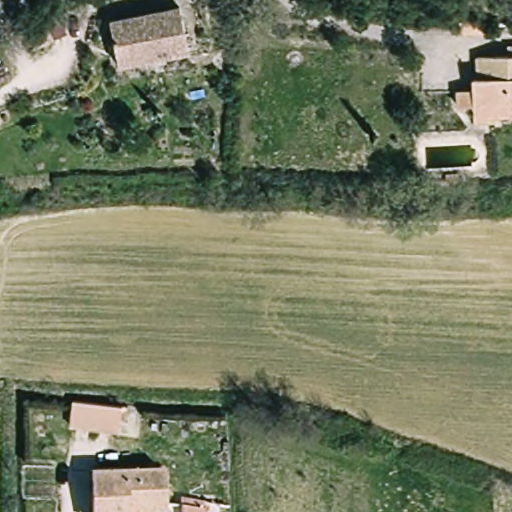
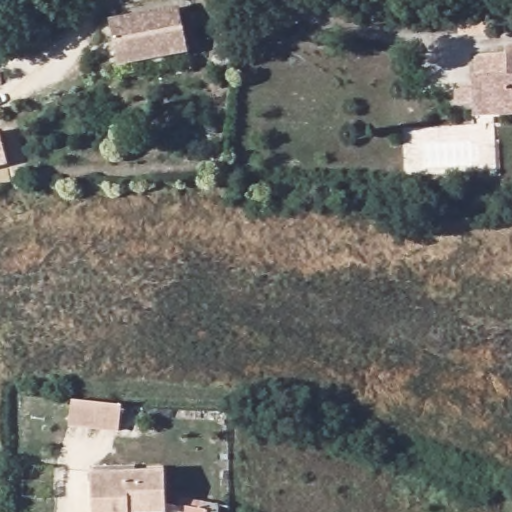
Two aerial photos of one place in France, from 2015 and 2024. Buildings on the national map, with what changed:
unchanged [(179,15),(183,56),(109,65),(103,24),(179,15)]
unchanged [(465,101),(465,84),(472,85),(475,58),(512,58),(512,118),(503,117),(466,117),(465,101)]
new [(0,168),(0,136),(9,166),(0,168)]
unchanged [(64,402),(113,405),(111,430),(62,427),(64,402)]
unchanged [(156,481),(157,512),(85,512),(85,485),(156,481)]
unchanged [(171,488),(195,487),(196,512),(172,512),(171,488)]

